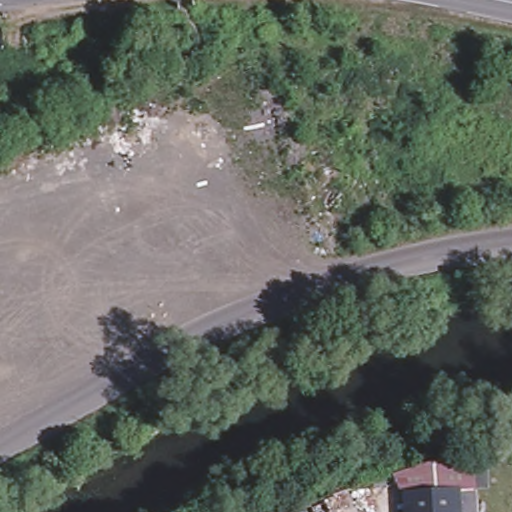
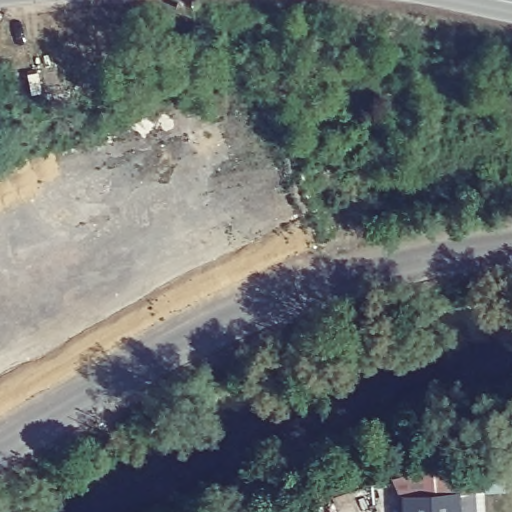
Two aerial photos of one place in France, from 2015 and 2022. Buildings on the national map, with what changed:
unchanged [(474,512),(401,512),(398,475),(470,452),(474,512)]

